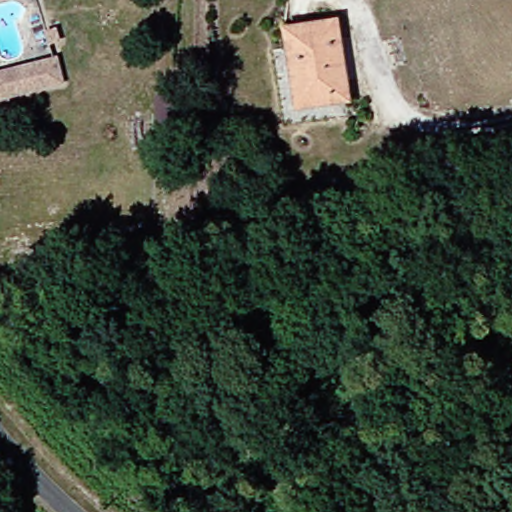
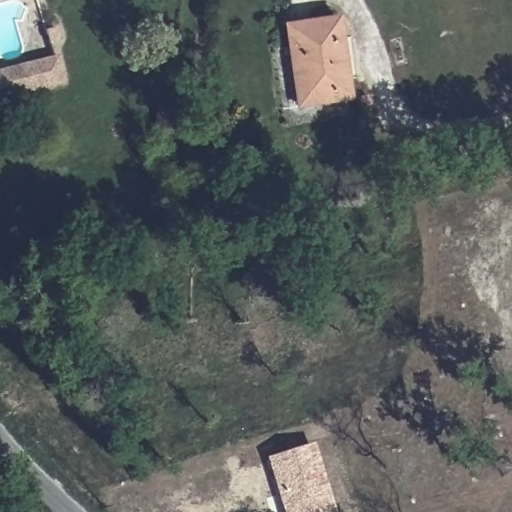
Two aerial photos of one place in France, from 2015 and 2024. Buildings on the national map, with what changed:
unchanged [(287,106),(275,26),(328,19),(332,44),(337,71),(342,98),(287,106)]
unchanged [(56,80),(0,97),(0,70),(48,55),(56,80)]
new [(266,457),(313,442),(336,512),(283,512),(266,457)]

